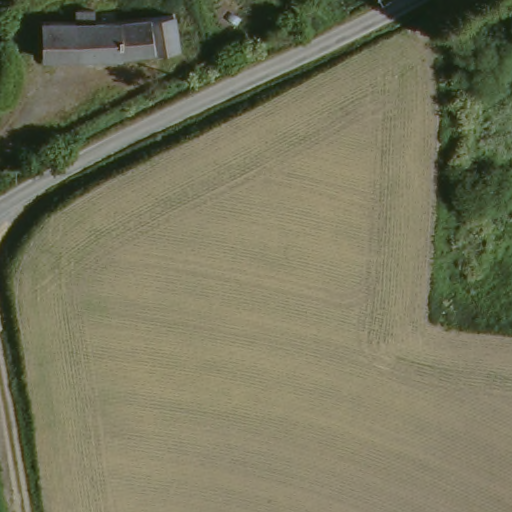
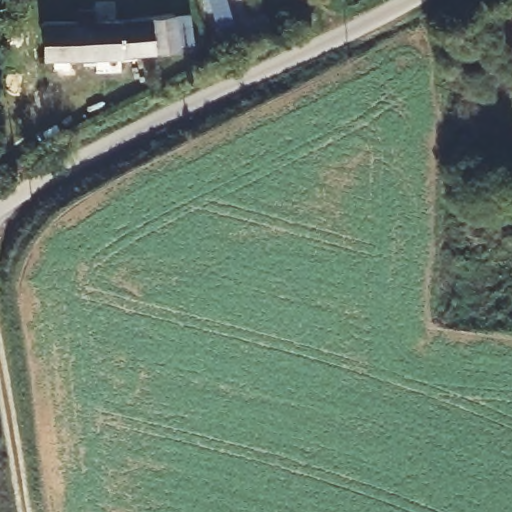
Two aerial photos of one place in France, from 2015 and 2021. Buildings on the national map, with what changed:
unchanged [(84,20),(86,9),(100,9),(101,19),(182,15),(184,55),(49,60),(49,21),(84,20)]

